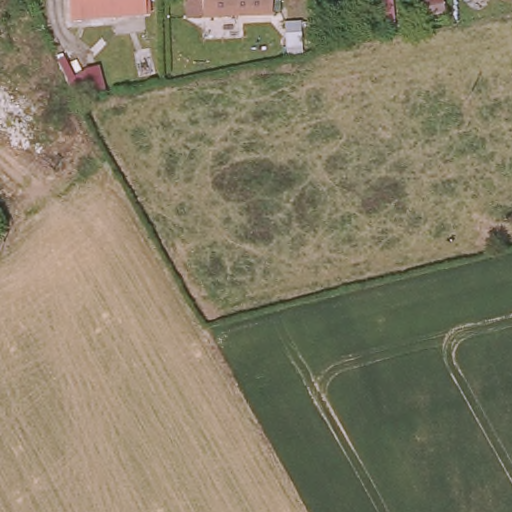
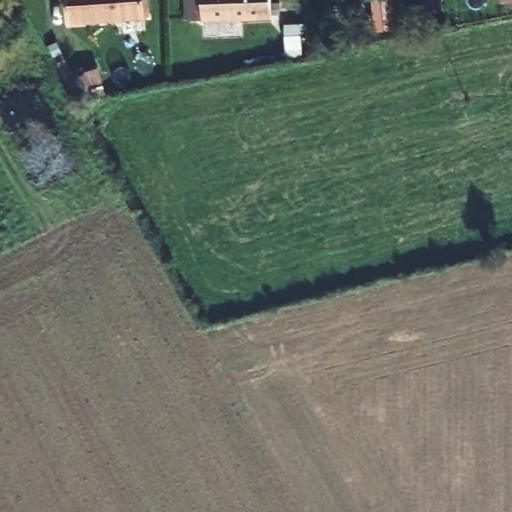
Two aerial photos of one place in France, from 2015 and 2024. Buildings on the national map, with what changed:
unchanged [(142,15),(68,23),(65,0),(140,0),(142,15)]
unchanged [(267,12),(203,19),(200,0),(265,0),(267,12)]

